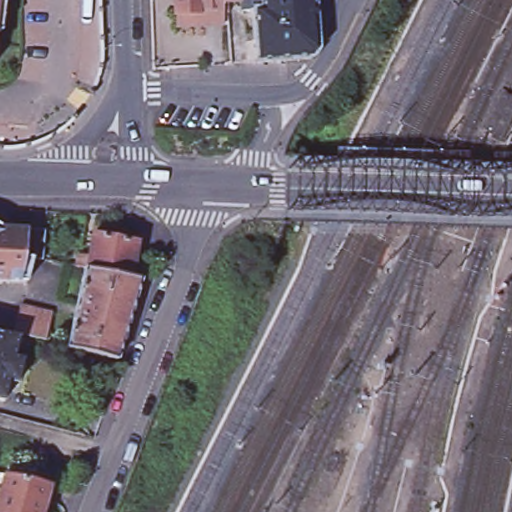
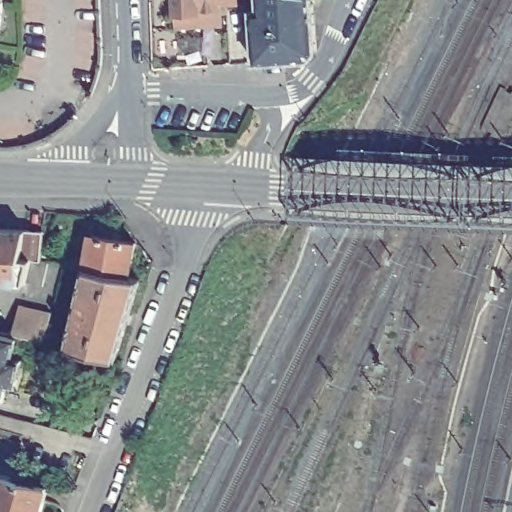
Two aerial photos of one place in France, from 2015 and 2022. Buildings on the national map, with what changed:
unchanged [(0,41),(0,0),(6,0),(0,41)]
unchanged [(226,4),(223,5),(223,15),(221,15),(221,30),(176,33),(175,16),(174,0),(237,0),(236,1),(226,4)]
unchanged [(243,14),(242,4),(245,0),(314,0),(316,21),(318,53),(311,61),(256,65),(252,14),(243,14)]
unchanged [(512,90),(512,136),(509,141),(491,133),(511,90),(512,90)]
unchanged [(27,236),(43,237),(42,264),(32,262),(26,289),(0,286),(0,233),(0,234),(27,236)]
unchanged [(86,267),(93,233),(136,241),(136,242),(133,259),(153,266),(150,278),(141,277),(117,358),(67,346),(84,267),(86,267)]
unchanged [(18,386),(9,384),(4,404),(0,403),(0,335),(15,339),(20,317),(18,316),(20,309),(51,317),(49,324),(44,346),(20,340),(15,359),(23,361),(18,386)]
unchanged [(1,512),(0,512),(0,480),(9,482),(1,512)]
unchanged [(54,492),(48,512),(1,512),(9,482),(35,488),(54,492)]

